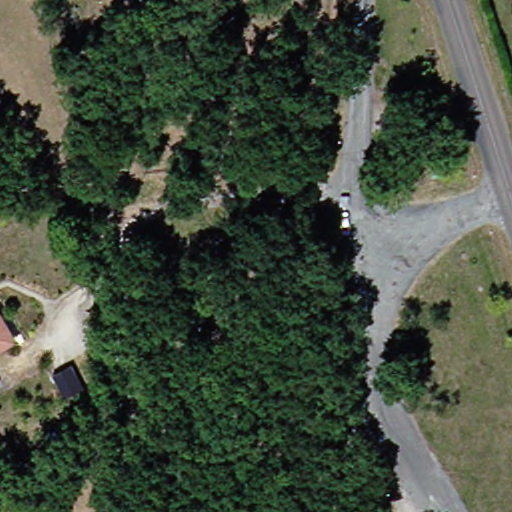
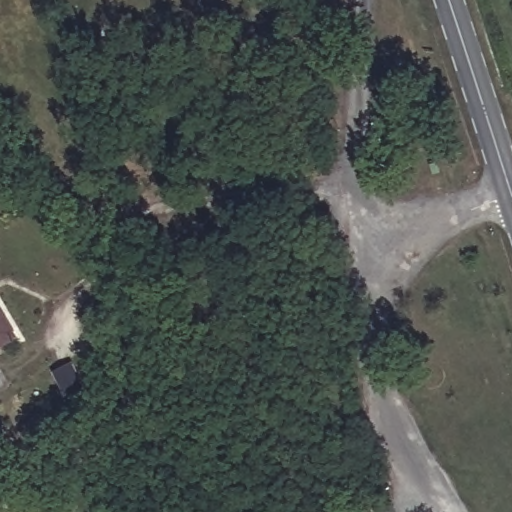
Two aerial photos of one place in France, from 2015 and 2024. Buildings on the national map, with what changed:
unchanged [(338,243),(345,263),(324,270),(319,250),(338,243)]
unchanged [(5,305),(26,333),(0,352),(0,308),(5,305)]

